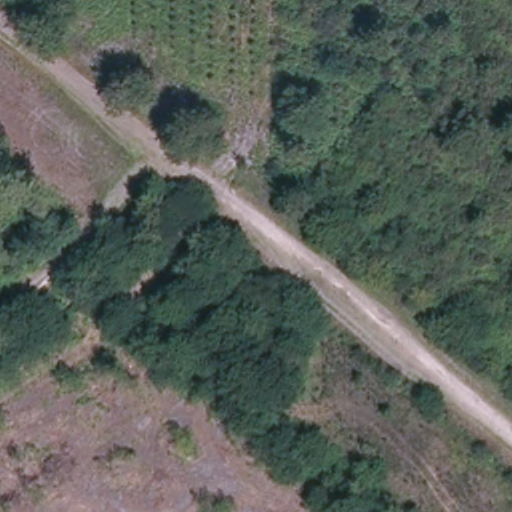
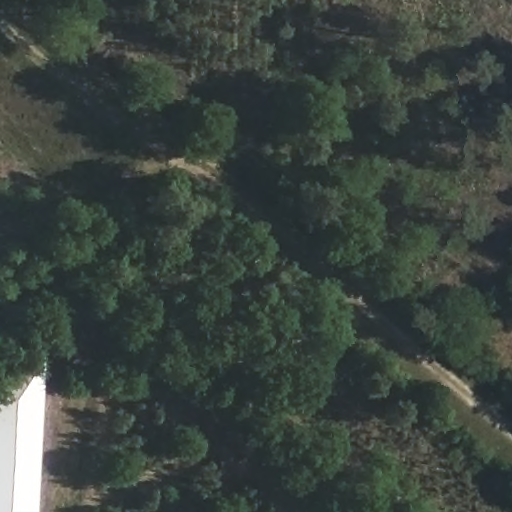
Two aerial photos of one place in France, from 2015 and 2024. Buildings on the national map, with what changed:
new [(32,512),(0,512),(0,386),(38,359),(32,512)]

